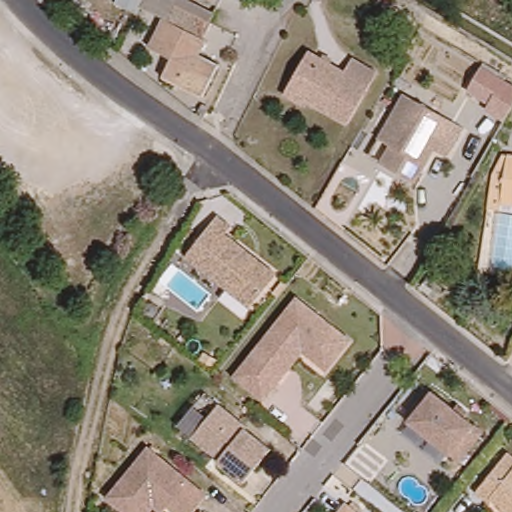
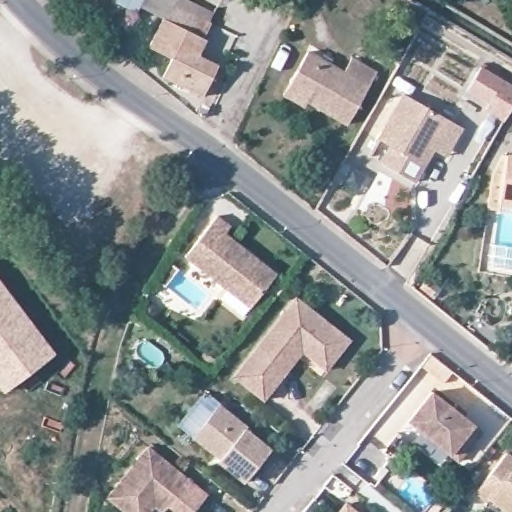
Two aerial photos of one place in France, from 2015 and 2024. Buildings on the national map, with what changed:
demolished [(91,0),(100,0),(95,5),(91,0)]
unchanged [(200,50),(192,65),(212,75),(197,105),(158,86),(166,67),(145,56),(157,29),(135,18),(142,3),(144,0),(160,0),(172,5),(208,23),(205,31),(205,32),(197,48),(200,50)]
unchanged [(285,94),(290,82),(309,50),(345,71),(352,58),(377,72),(347,124),(306,100),(304,105),(285,94)]
unchanged [(467,90),(470,86),(481,66),(503,79),(492,99),(490,102),(467,90)]
unchanged [(375,162),(385,145),(374,139),(400,94),(445,120),(458,128),(446,150),(442,156),(429,149),(420,165),(410,182),(375,162)]
unchanged [(504,211),(491,210),(497,174),(507,155),(512,155),(512,203),(505,202),(504,211)]
unchanged [(232,288),(190,255),(222,215),(236,225),(230,233),(281,273),(258,302),(255,306),(232,288)]
new [(55,355),(2,392),(0,389),(0,282),(55,355)]
unchanged [(276,381),(264,397),(238,376),(290,311),(300,298),(323,316),(354,341),(330,370),(302,348),(289,365),(276,381)]
unchanged [(458,463),(407,422),(431,393),(452,410),(456,406),(467,415),(463,419),(481,433),(458,463)]
unchanged [(196,434),(218,405),(247,428),(245,430),(270,450),(244,483),(217,463),(220,460),(192,439),(196,434)]
unchanged [(158,503),(151,512),(132,512),(111,496),(152,445),(211,492),(196,512),(183,512),(172,503),(167,510),(158,503)]
unchanged [(492,497),(480,488),(511,449),(512,449),(512,508),(495,495),(492,497)]
unchanged [(365,512),(341,512),(350,500),(365,512)]

